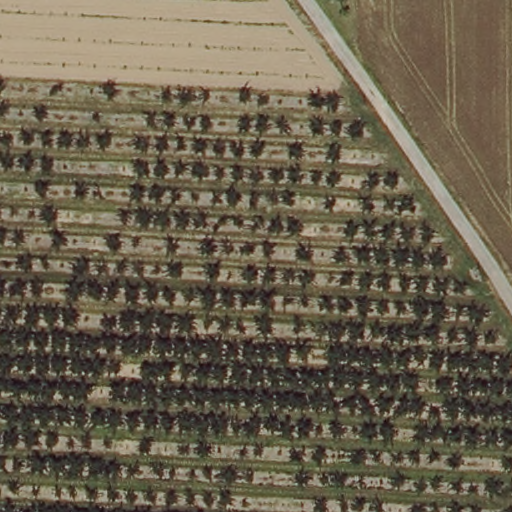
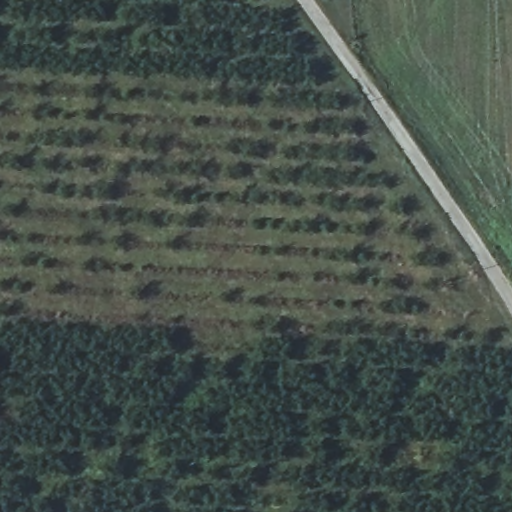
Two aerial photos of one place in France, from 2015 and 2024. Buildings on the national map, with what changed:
[]

